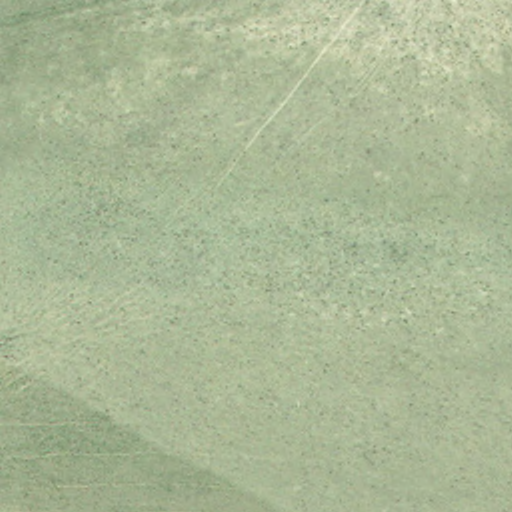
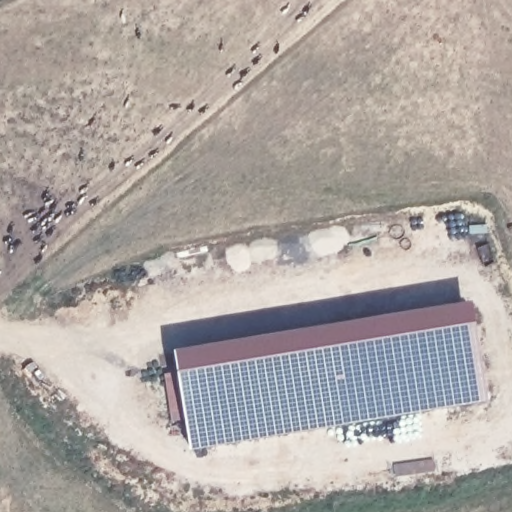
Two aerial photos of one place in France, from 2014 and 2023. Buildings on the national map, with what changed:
new [(489,401),(190,448),(174,345),(472,298),(489,401)]

